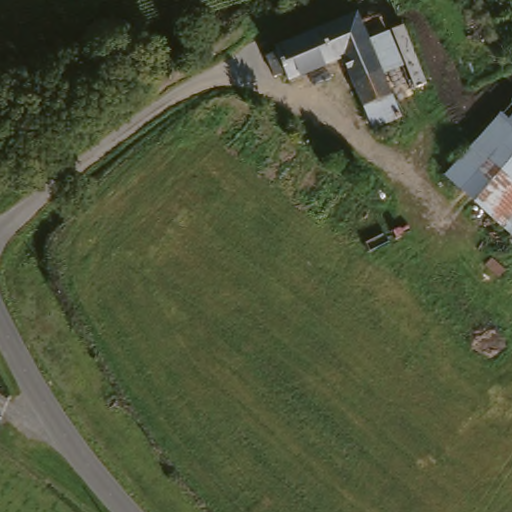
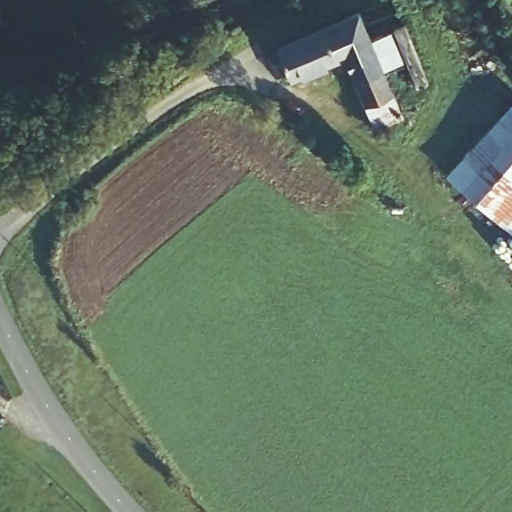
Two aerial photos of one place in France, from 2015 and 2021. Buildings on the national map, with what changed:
unchanged [(401,91),(411,115),(383,126),(373,102),(355,54),(300,76),(298,71),(287,75),(278,51),(288,48),(286,43),(369,8),(380,35),(401,91)]
unchanged [(380,35),(398,28),(421,83),(401,91),(380,35)]
unchanged [(512,225),(451,173),(512,104),(512,225)]

